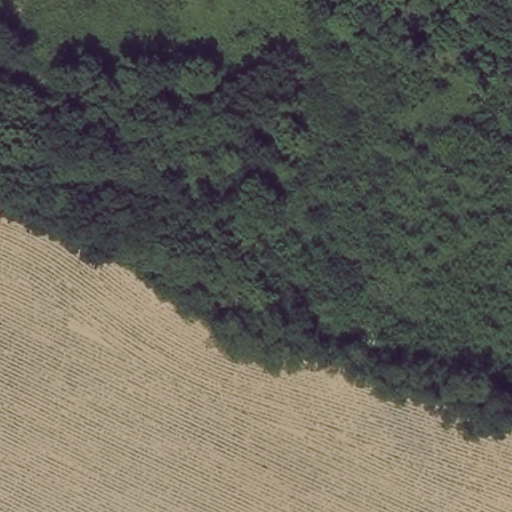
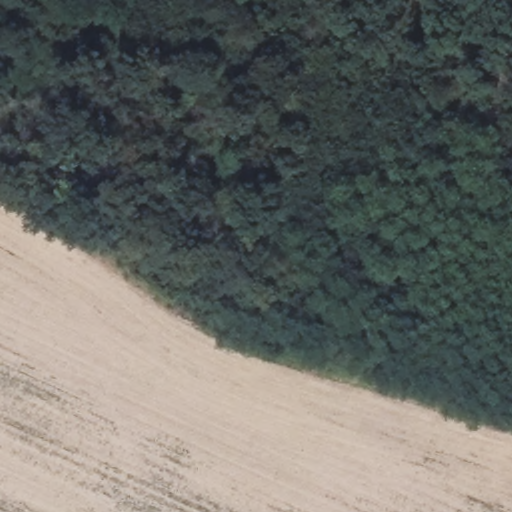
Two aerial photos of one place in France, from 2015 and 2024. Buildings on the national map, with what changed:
[]

